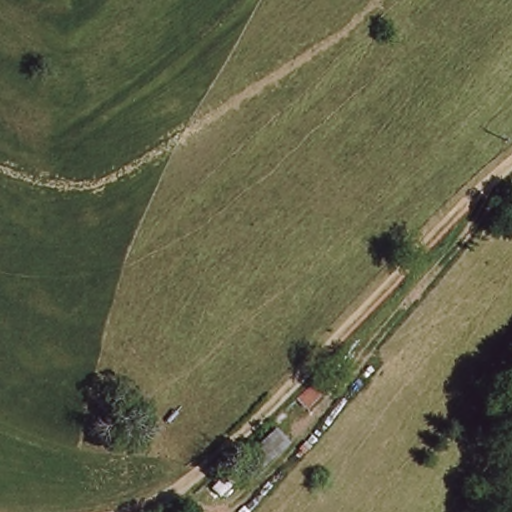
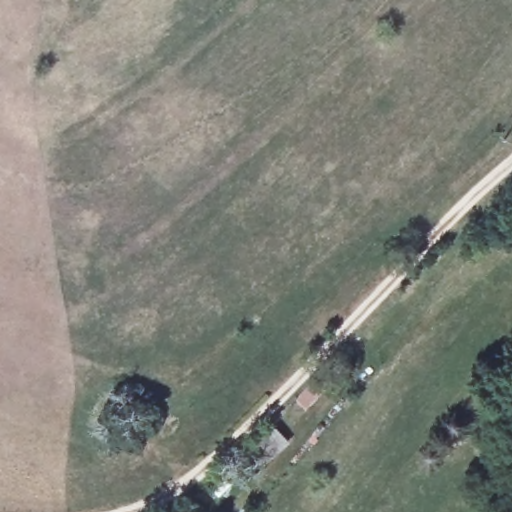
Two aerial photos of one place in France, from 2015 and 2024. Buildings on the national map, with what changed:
unchanged [(251,482),(238,463),(266,432),(283,452),(251,482)]

